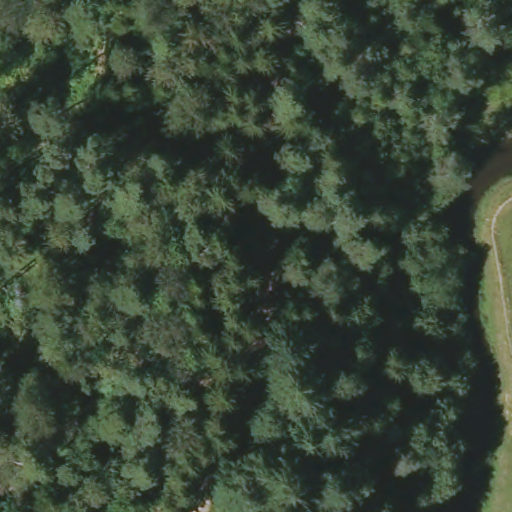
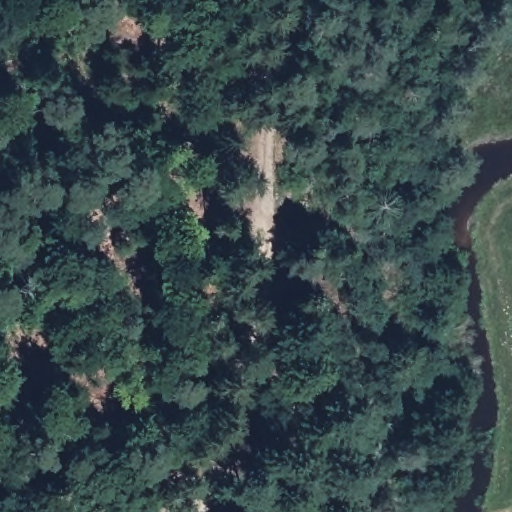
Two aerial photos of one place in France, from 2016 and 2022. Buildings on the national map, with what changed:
[]

